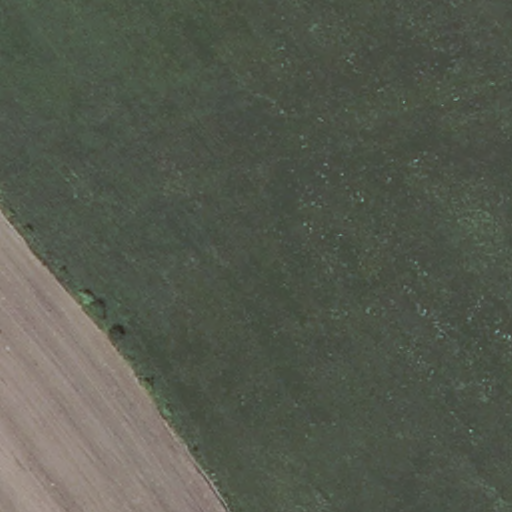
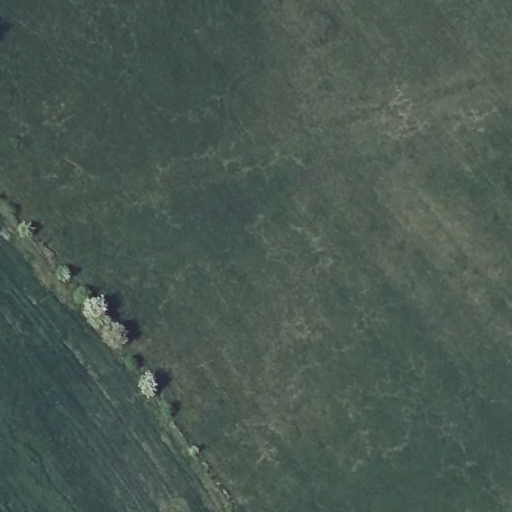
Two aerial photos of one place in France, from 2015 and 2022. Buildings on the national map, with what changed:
[]

